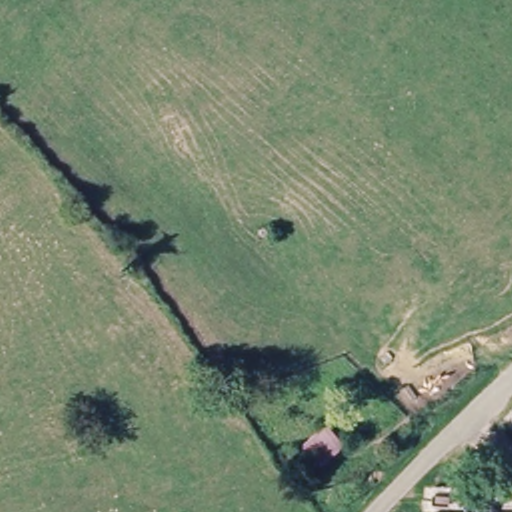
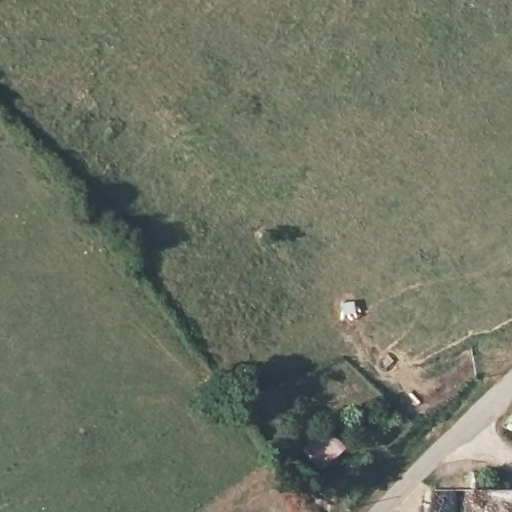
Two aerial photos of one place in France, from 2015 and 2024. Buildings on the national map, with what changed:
unchanged [(308,451),(334,427),(350,446),(326,465),(308,451)]

